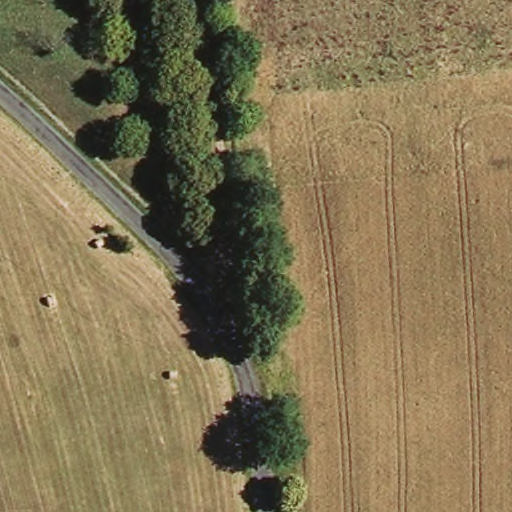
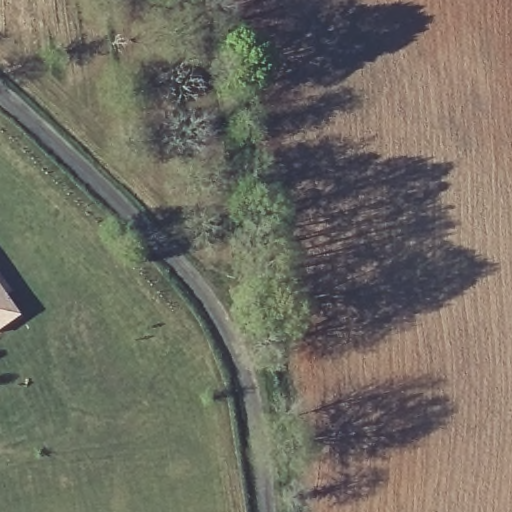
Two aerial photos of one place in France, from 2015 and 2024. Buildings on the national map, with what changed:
new [(17,315),(0,328),(0,291),(17,315)]

